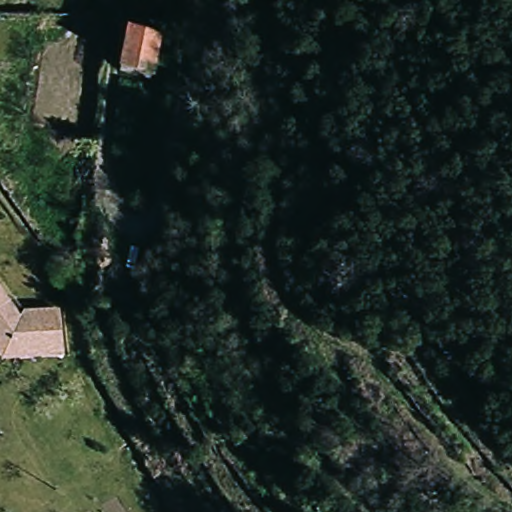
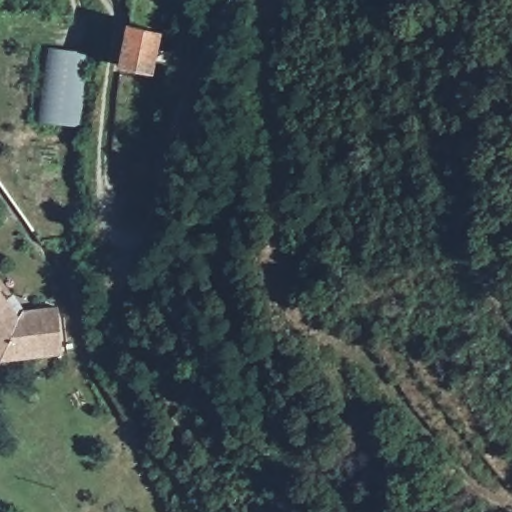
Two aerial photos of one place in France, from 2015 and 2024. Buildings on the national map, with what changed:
unchanged [(163,34),(153,75),(119,70),(125,35),(126,30),(163,34)]
new [(37,123),(46,49),(85,53),(76,127),(37,123)]
unchanged [(62,310),(65,310),(66,318),(67,360),(11,362),(4,366),(0,362),(0,291),(15,312),(62,310)]

